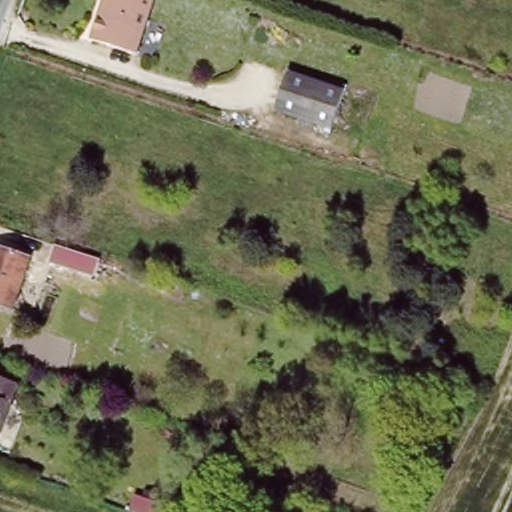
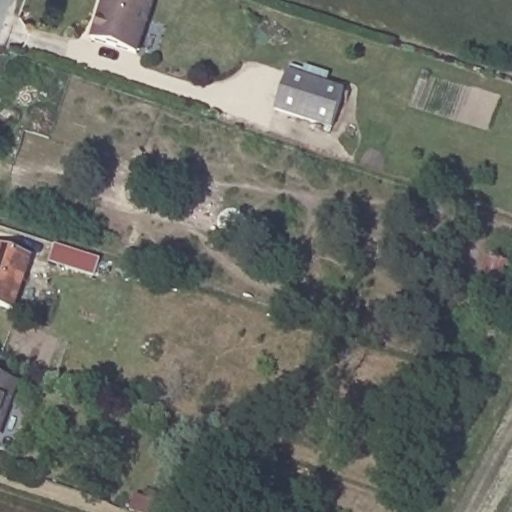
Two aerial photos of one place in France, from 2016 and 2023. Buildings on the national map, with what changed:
unchanged [(153,0),(143,32),(137,52),(91,37),(97,18),(103,0),(153,0)]
unchanged [(299,114),(275,105),(285,76),(289,69),(345,88),(344,95),(334,125),(299,114)]
unchanged [(107,282),(50,263),(56,247),(112,266),(107,282)]
unchanged [(0,308),(0,250),(25,258),(7,310),(0,308)]
unchanged [(12,403),(0,437),(0,377),(20,385),(12,403)]

